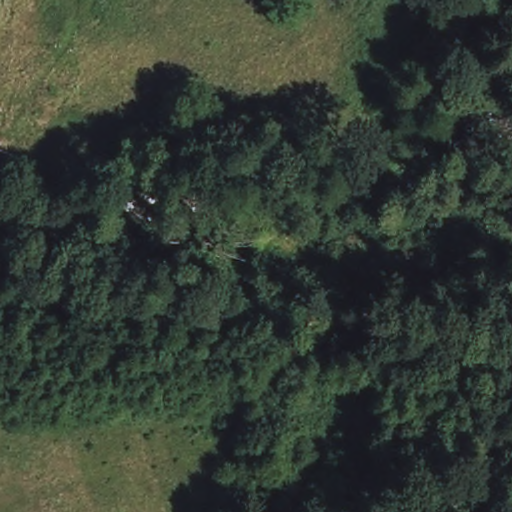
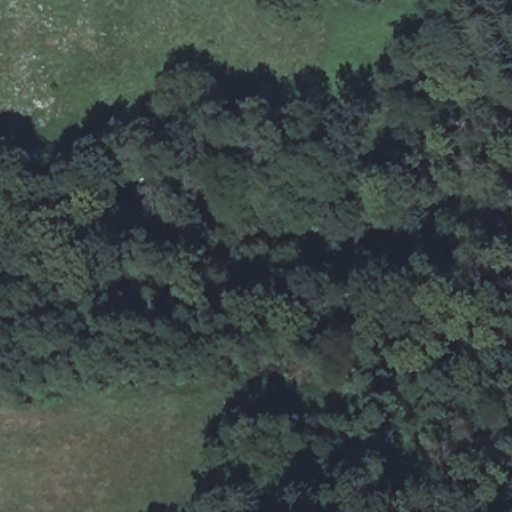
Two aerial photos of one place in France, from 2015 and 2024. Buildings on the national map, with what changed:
[]

